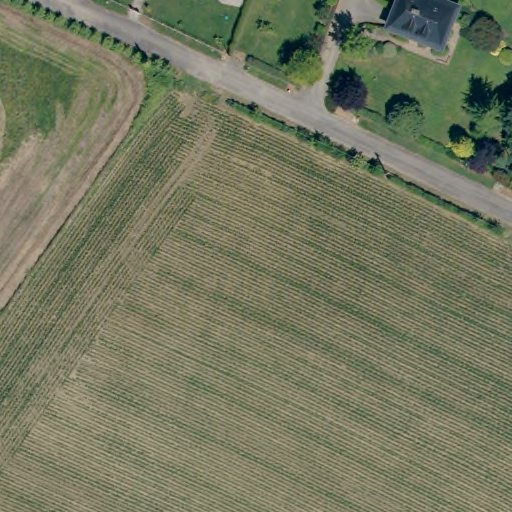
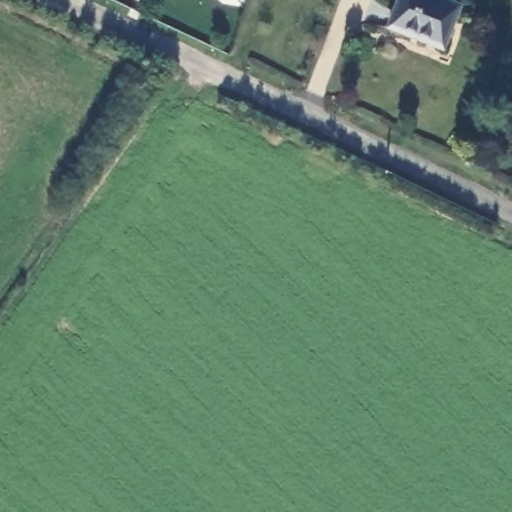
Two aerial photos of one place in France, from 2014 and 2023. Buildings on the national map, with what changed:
unchanged [(399,24),(408,0),(438,0),(465,11),(451,46),(399,24)]

